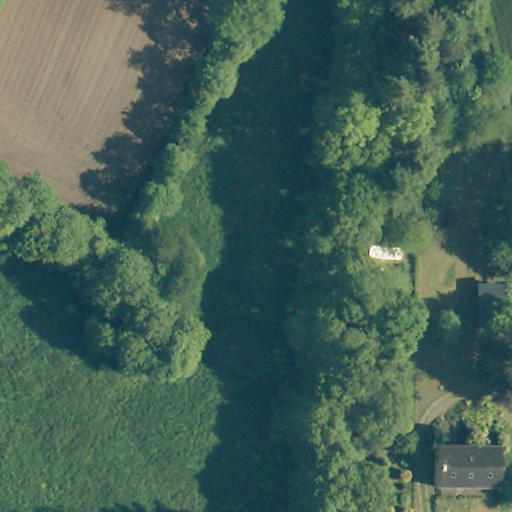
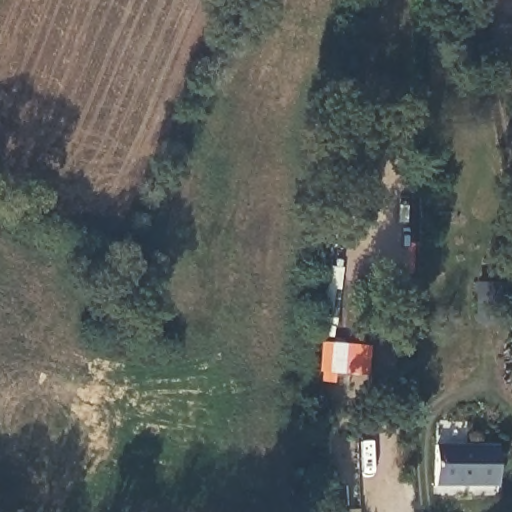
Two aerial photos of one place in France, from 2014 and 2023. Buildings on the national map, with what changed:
unchanged [(503,447),(503,487),(443,486),(443,447),(503,447)]

